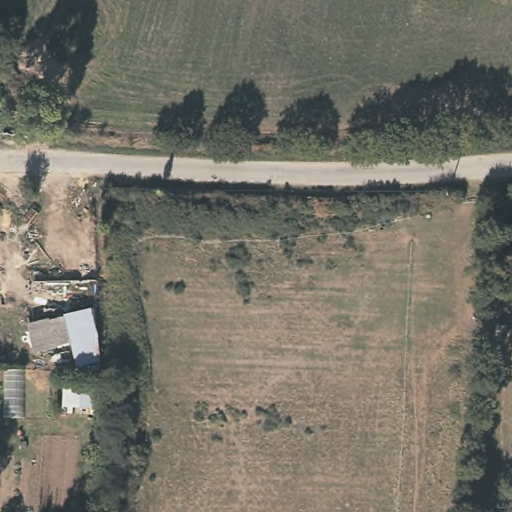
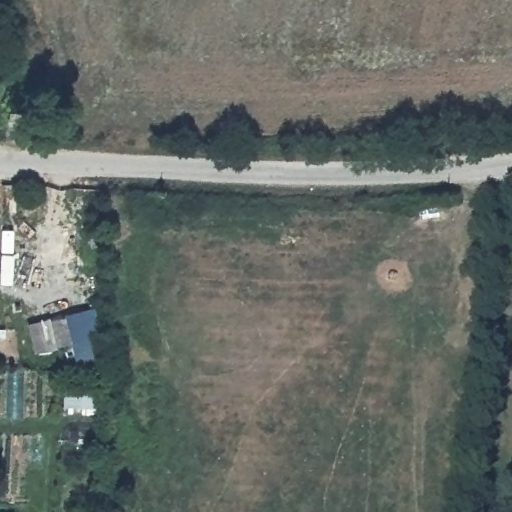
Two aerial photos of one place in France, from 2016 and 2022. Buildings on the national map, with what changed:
unchanged [(94,367),(75,368),(73,342),(52,351),(40,320),(60,314),(61,316),(93,308),(94,367)]

